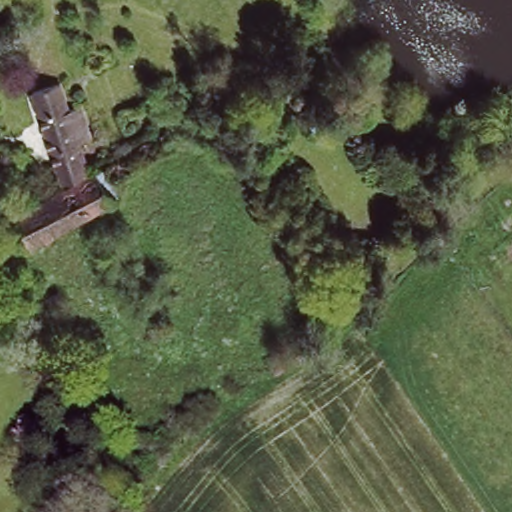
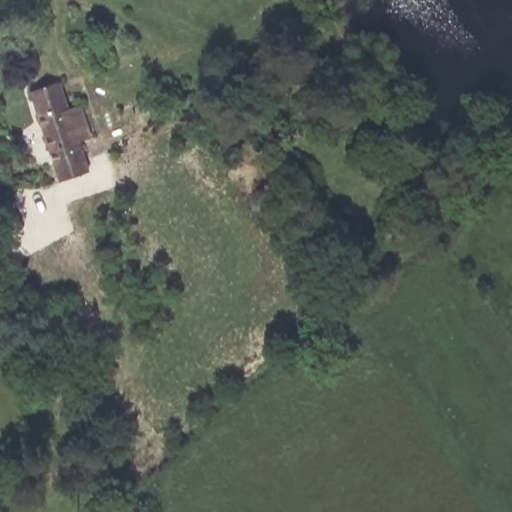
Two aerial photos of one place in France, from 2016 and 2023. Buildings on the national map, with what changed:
unchanged [(30,10),(18,14),(14,0),(27,0),(30,10)]
unchanged [(83,104),(94,135),(81,139),(92,169),(62,179),(34,88),(61,79),(71,108),(83,104)]
unchanged [(28,197),(34,209),(101,172),(116,198),(33,247),(29,239),(19,244),(8,226),(18,220),(10,207),(28,197)]

